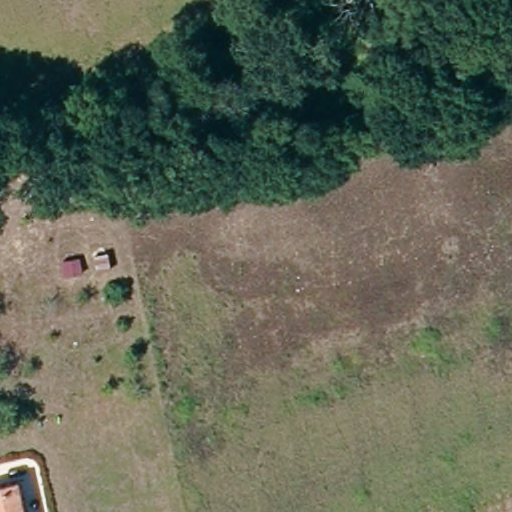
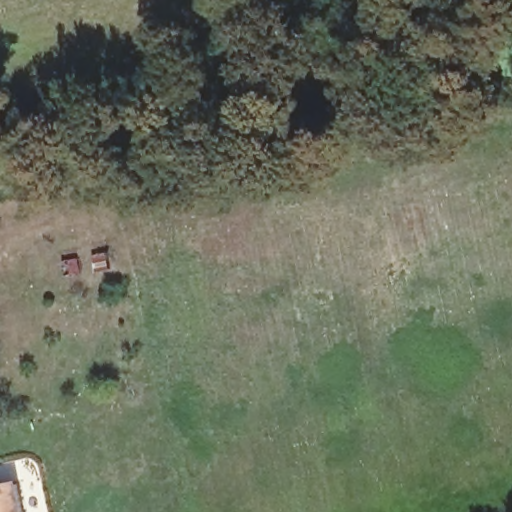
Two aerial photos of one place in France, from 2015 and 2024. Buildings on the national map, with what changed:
unchanged [(16,491),(20,512),(0,512),(0,494),(16,491)]

